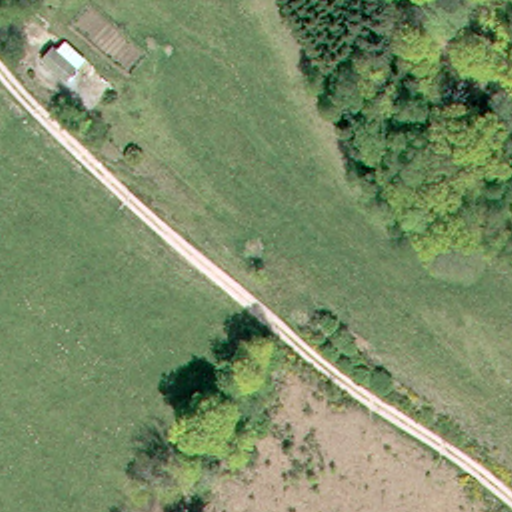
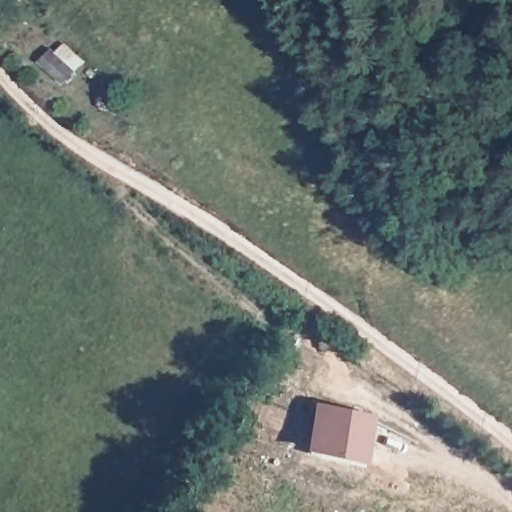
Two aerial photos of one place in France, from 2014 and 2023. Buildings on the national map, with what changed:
unchanged [(54,49),(60,42),(81,59),(74,67),(60,81),(38,60),(50,46),(54,49)]
new [(374,416),(362,462),(305,451),(315,406),(374,416)]

